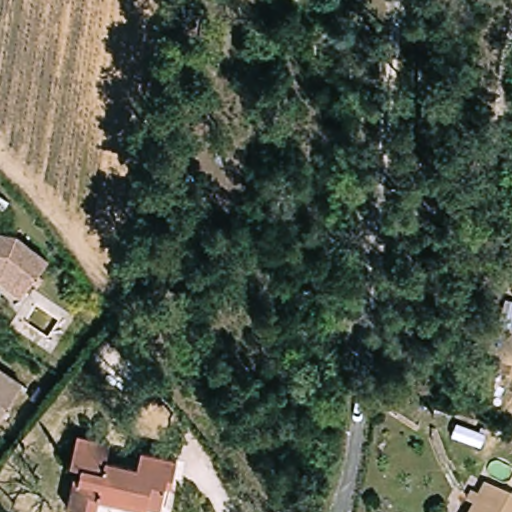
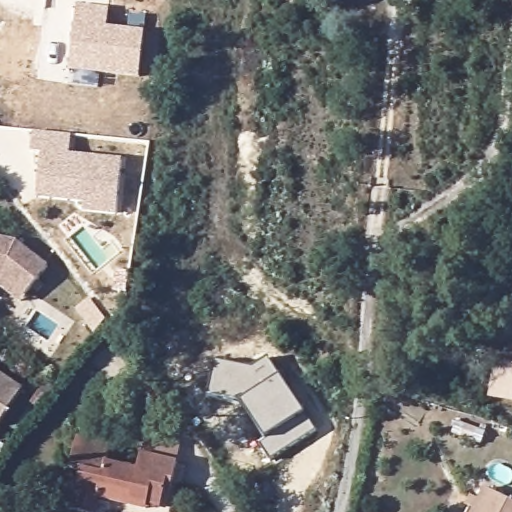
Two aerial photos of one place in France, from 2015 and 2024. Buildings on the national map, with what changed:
new [(145,31),(140,78),(70,71),(77,6),(109,9),(107,28),(145,31)]
new [(83,204),(35,198),(37,154),(30,153),(32,132),(72,135),(70,154),(122,158),(117,217),(83,213),(83,204)]
unchanged [(1,282),(0,281),(0,235),(20,240),(52,266),(28,294),(23,300),(1,282)]
new [(266,441),(239,403),(238,402),(206,396),(213,360),(252,370),(269,360),(281,379),(306,415),(316,431),(272,462),(260,446),(266,441)]
unchanged [(27,388),(3,427),(0,425),(0,371),(27,388)]
unchanged [(99,512),(95,512),(72,509),(75,484),(80,484),(82,471),(73,470),(80,437),(112,444),(109,458),(140,463),(144,449),(179,456),(176,486),(169,486),(168,504),(152,501),(151,508),(103,502),(99,512)]
unchanged [(512,507),(512,512),(474,512),(486,493),(512,507)]

